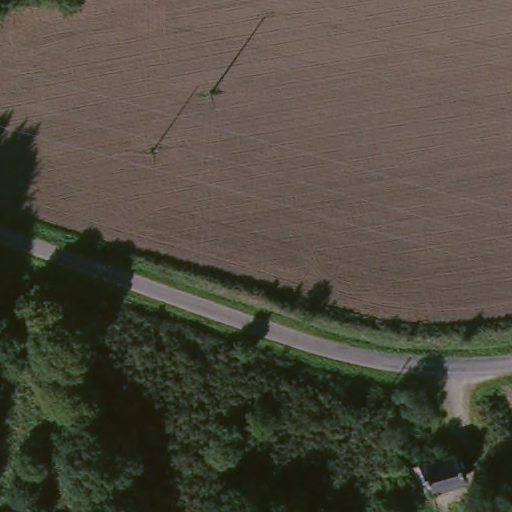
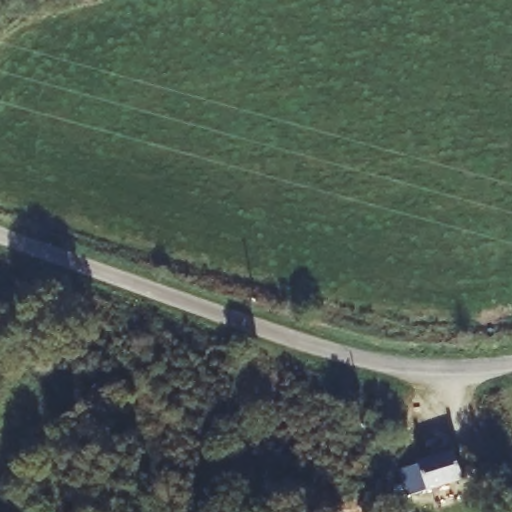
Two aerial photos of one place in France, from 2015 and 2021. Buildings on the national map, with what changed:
unchanged [(398,470),(411,465),(445,453),(456,482),(421,493),(406,497),(398,470)]

